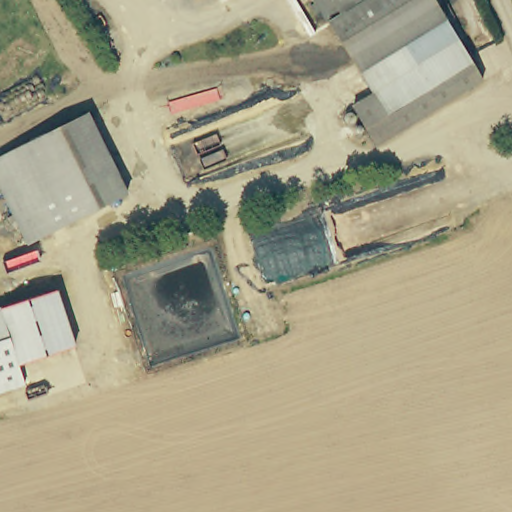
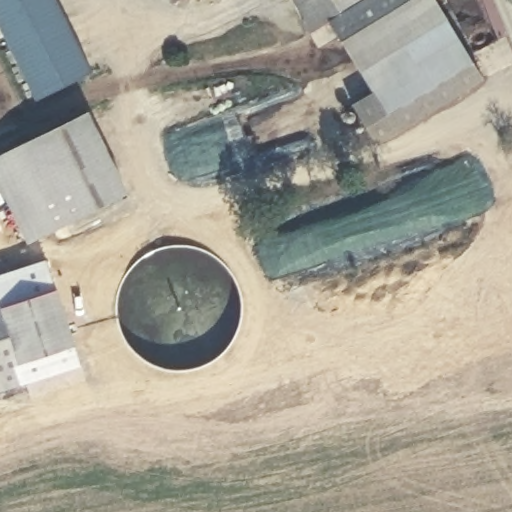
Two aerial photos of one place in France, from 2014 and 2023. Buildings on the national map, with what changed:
new [(0,0),(55,0),(92,73),(36,100),(0,26),(0,0)]
unchanged [(320,0),(358,0),(329,17),(320,0)]
unchanged [(439,8),(354,59),(329,17),(358,0),(435,0),(439,8)]
unchanged [(450,26),(365,77),(354,59),(439,8),(450,26)]
unchanged [(450,26),(483,83),(377,145),(353,104),(374,92),(365,77),(450,26)]
unchanged [(30,141),(86,113),(129,196),(72,223),(30,141)]
unchanged [(30,244),(0,183),(0,156),(30,141),(72,223),(30,244)]
unchanged [(56,290),(74,346),(18,364),(25,385),(0,393),(0,307),(56,290)]

